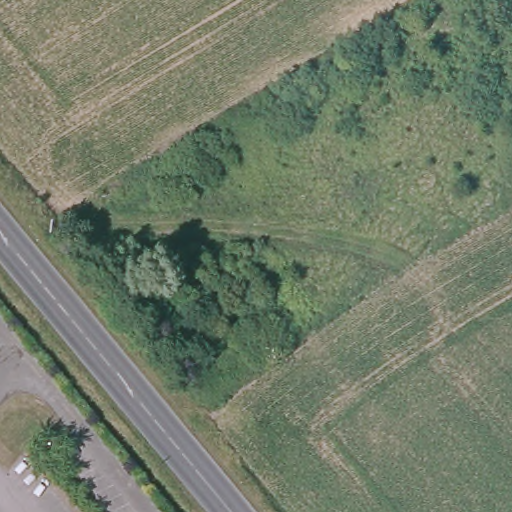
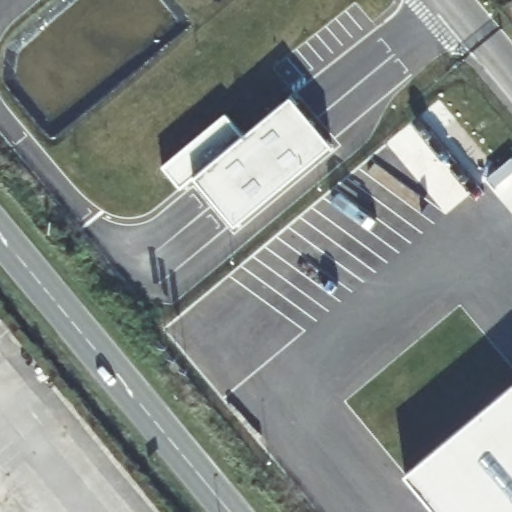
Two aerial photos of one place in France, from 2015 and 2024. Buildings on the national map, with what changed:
new [(245,135),(292,97),(330,145),(234,225),(194,178),(180,187),(162,165),(226,113),(245,135)]
new [(428,512),(411,492),(512,402),(512,512),(428,512)]

